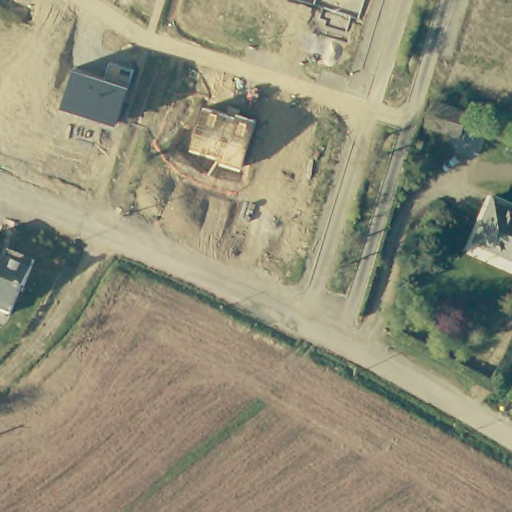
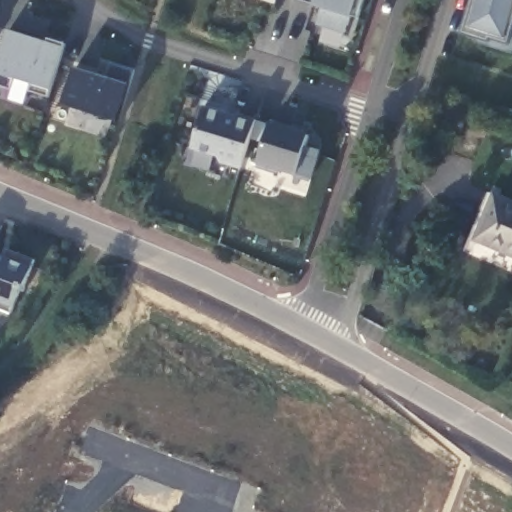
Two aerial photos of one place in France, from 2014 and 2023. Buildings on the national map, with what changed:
unchanged [(275,0),(277,0),(277,1),(275,0)]
unchanged [(351,17),(345,35),(317,27),(322,10),(311,6),(312,3),(300,0),(364,0),(358,20),(351,17)]
new [(491,38),(489,42),(463,34),(474,0),(512,0),(512,40),(511,45),(491,38)]
new [(47,42),(49,39),(64,44),(50,99),(30,92),(34,85),(14,79),(11,91),(0,87),(0,60),(9,31),(47,42)]
unchanged [(63,106),(76,67),(106,77),(111,62),(135,69),(132,85),(117,125),(63,106)]
unchanged [(461,135),(425,123),(431,99),(468,110),(461,135)]
unchanged [(222,162),(222,159),(191,147),(204,107),(235,117),(237,113),(257,120),(242,167),(222,162)]
new [(309,136),(306,147),(321,152),(312,181),(297,177),(259,165),(272,124),(309,136)]
unchanged [(512,254),(477,239),(495,195),(512,202),(512,254)]
unchanged [(4,257),(7,249),(34,260),(23,286),(21,285),(9,313),(0,310),(0,256),(4,257)]

